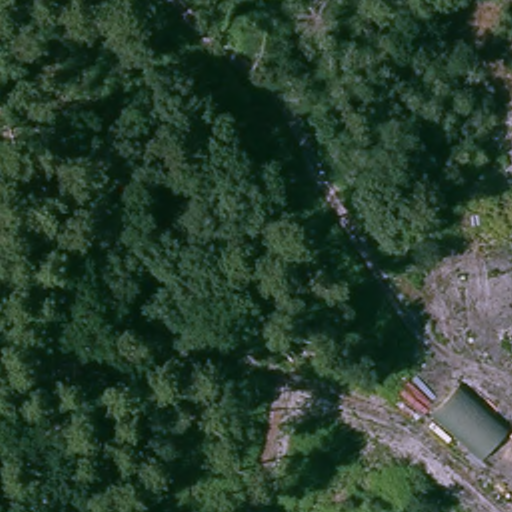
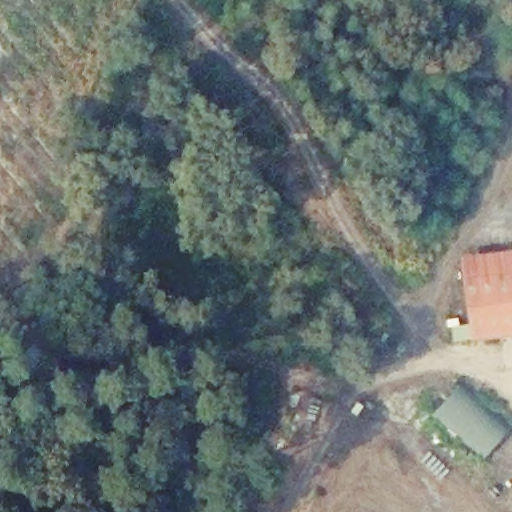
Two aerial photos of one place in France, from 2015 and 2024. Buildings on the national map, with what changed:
new [(512,271),(512,337),(471,342),(462,277),(512,271)]
unchanged [(507,433),(484,457),(435,412),(457,387),(507,433)]

